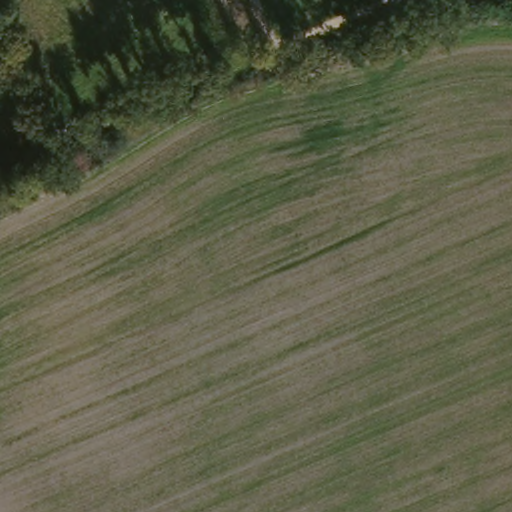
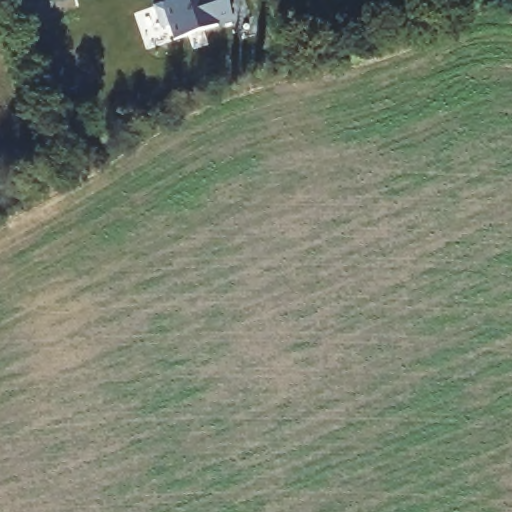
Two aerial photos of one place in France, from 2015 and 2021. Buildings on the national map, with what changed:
new [(182,0),(226,0),(234,23),(176,42),(171,27),(162,30),(155,9),(182,0)]

